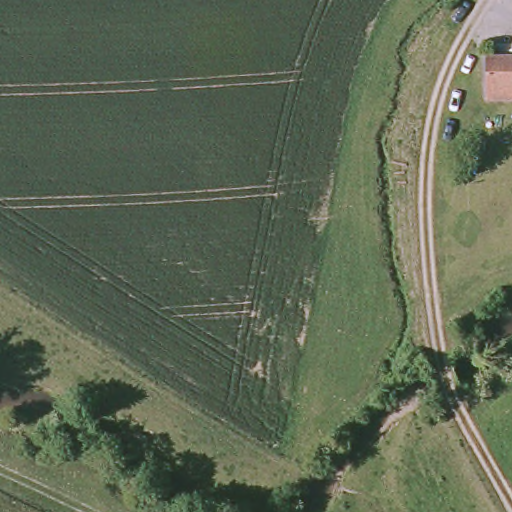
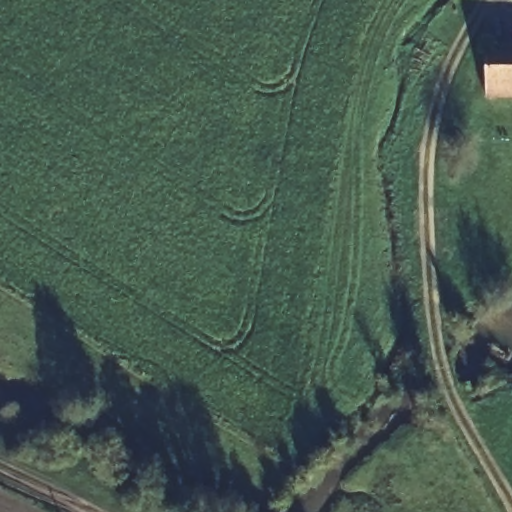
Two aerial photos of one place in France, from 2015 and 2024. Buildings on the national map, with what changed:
unchanged [(512,57),(512,95),(490,96),(489,57),(512,57)]

